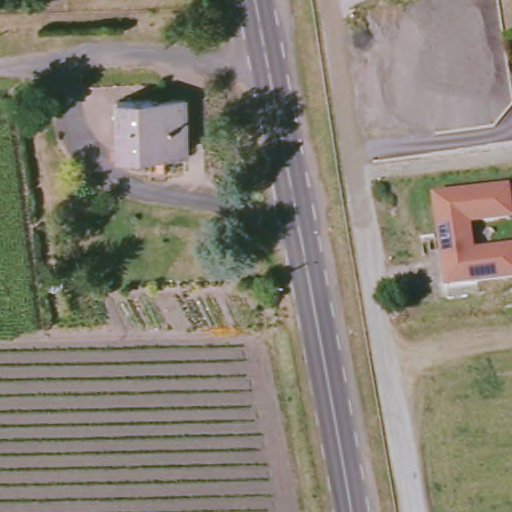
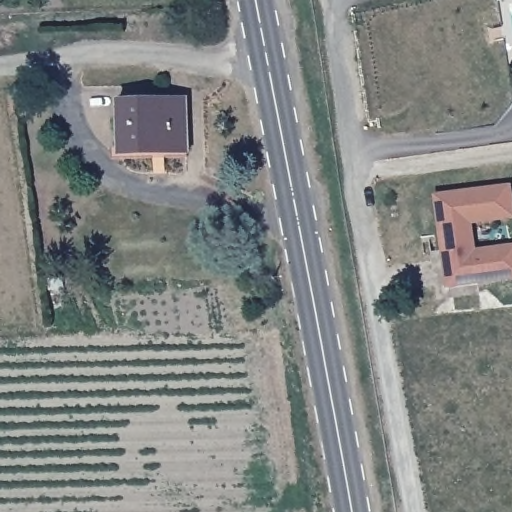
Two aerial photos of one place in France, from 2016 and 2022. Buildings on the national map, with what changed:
unchanged [(187,159),(110,158),(110,104),(188,106),(187,159)]
unchanged [(512,223),(475,229),(477,251),(512,247),(512,283),(445,290),(431,198),(510,187),(512,195),(512,223)]

